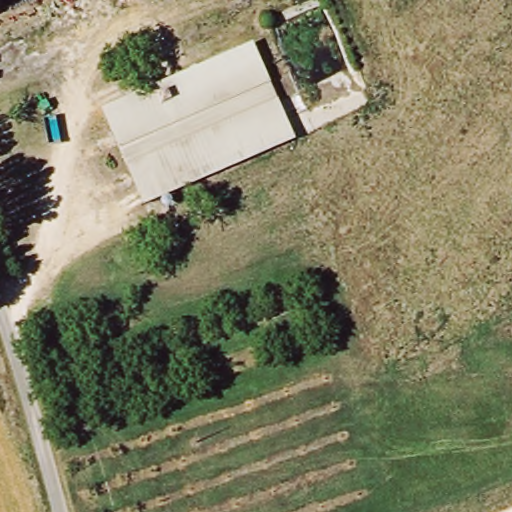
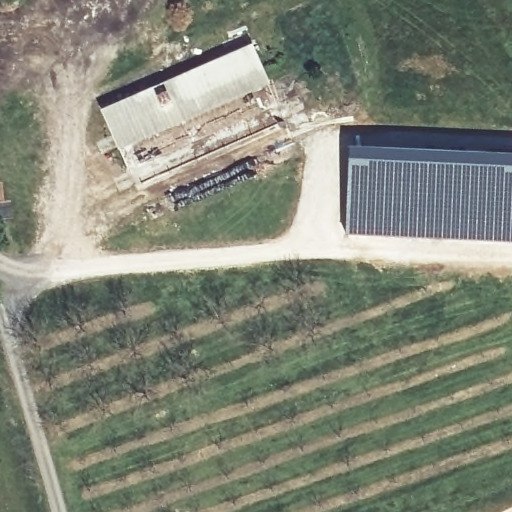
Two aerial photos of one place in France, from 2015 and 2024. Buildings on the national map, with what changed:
demolished [(0,91),(0,18),(34,0),(49,0),(72,55),(0,91)]
unchanged [(259,51),(299,145),(284,151),(246,56),(259,51)]
unchanged [(150,206),(112,111),(246,56),(284,151),(150,206)]
new [(358,147),(512,155),(512,215),(354,207),(356,148),(358,147)]
new [(512,215),(512,240),(352,232),(354,207),(512,215)]

